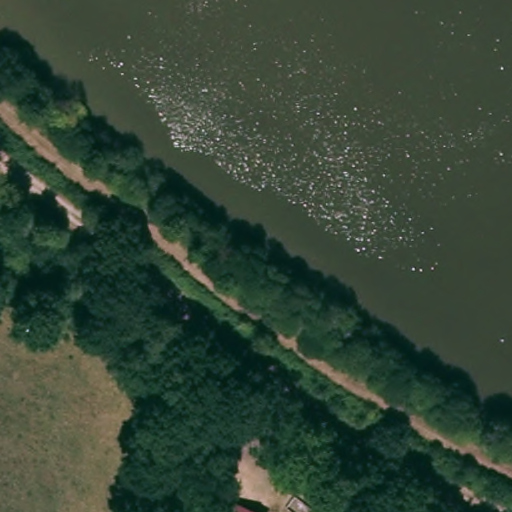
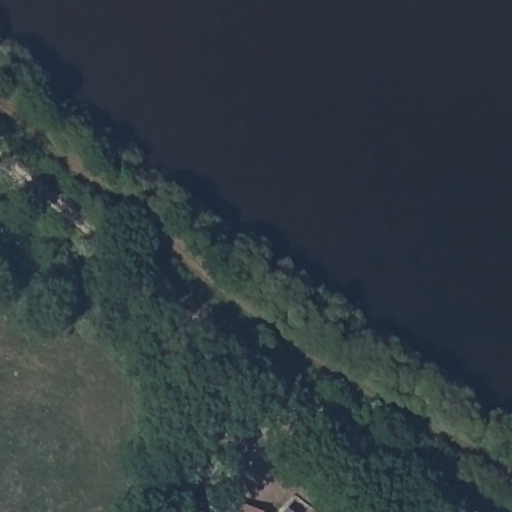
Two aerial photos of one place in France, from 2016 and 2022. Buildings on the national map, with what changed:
unchanged [(253,512),(228,512),(232,502),(253,512)]
unchanged [(213,510),(218,512),(212,512),(213,510)]

